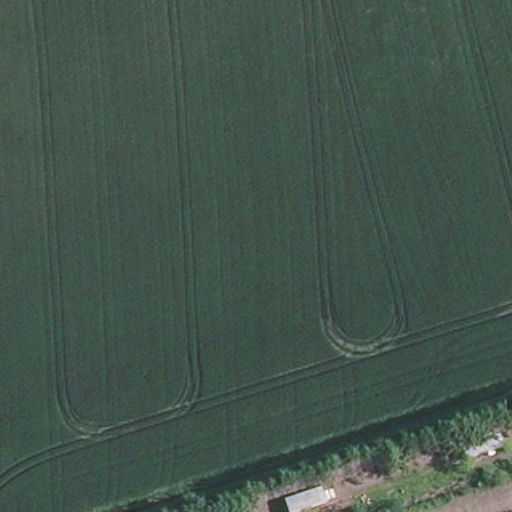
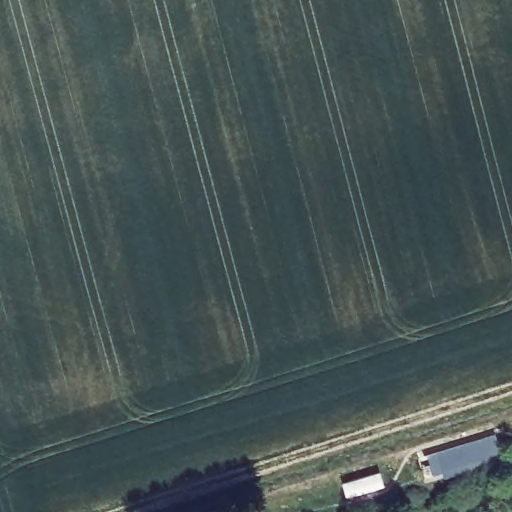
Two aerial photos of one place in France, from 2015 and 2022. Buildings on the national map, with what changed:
new [(509,462),(444,478),(442,472),(434,474),(428,450),(502,432),(509,462)]

